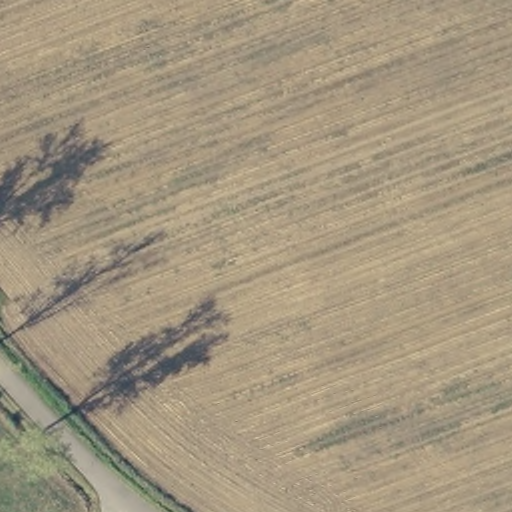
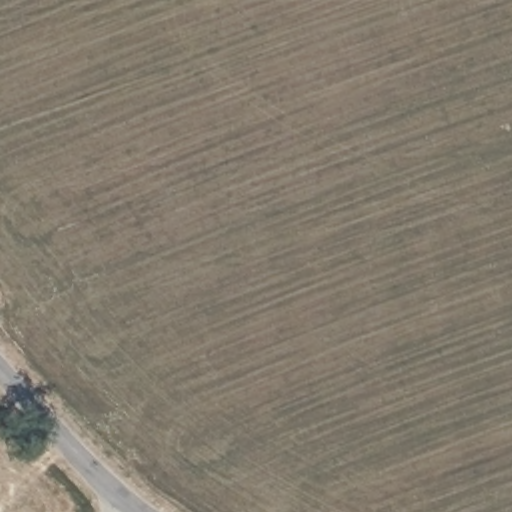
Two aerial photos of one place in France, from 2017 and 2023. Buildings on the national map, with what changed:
[]

